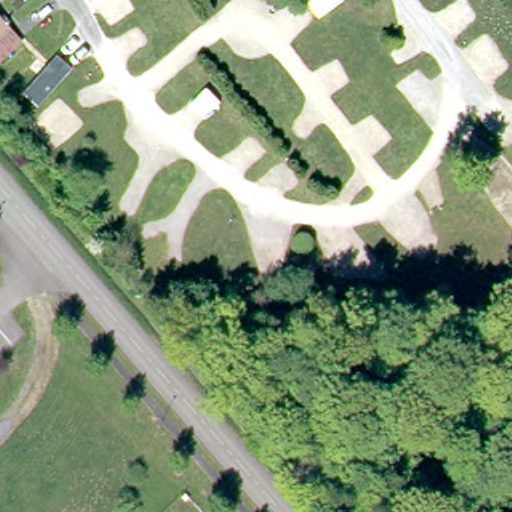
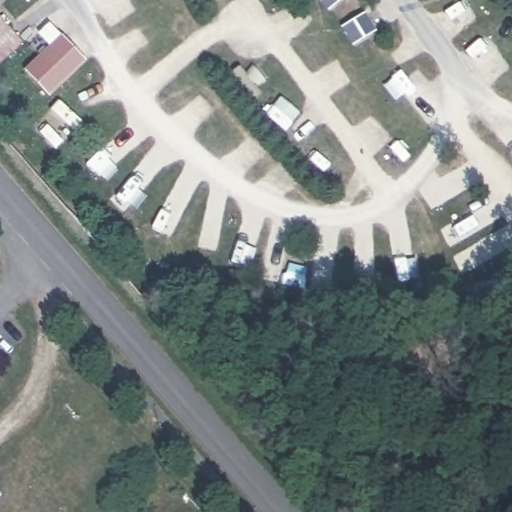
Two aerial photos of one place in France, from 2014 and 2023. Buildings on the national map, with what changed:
unchanged [(0,59),(0,23),(7,30),(19,42),(0,59)]
new [(86,60),(50,96),(25,70),(61,34),(86,60)]

